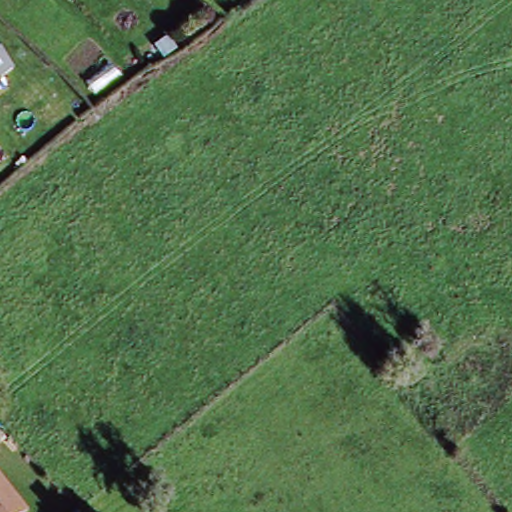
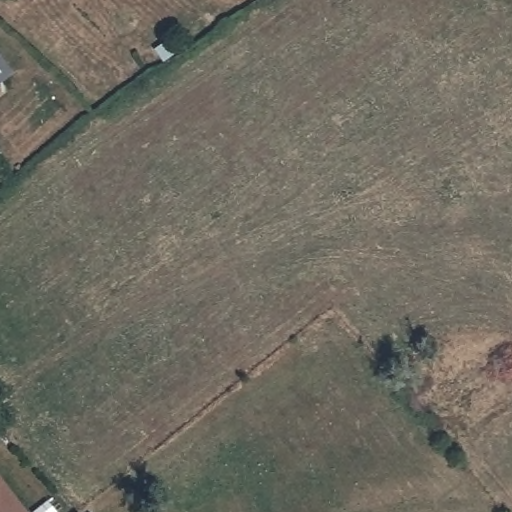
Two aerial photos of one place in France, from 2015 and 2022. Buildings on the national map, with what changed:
unchanged [(0,85),(0,55),(15,73),(0,85)]
unchanged [(29,511),(28,512),(0,512),(0,475),(29,511)]

